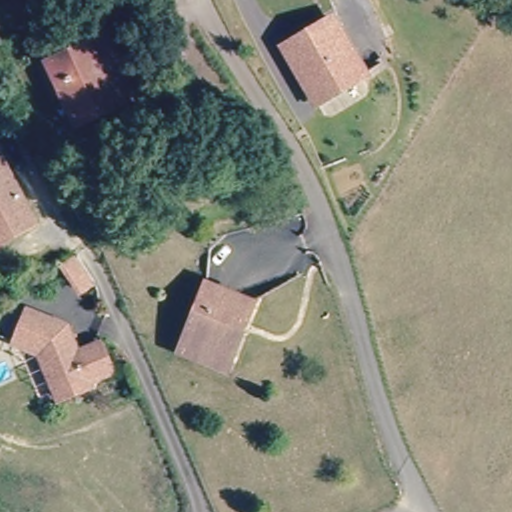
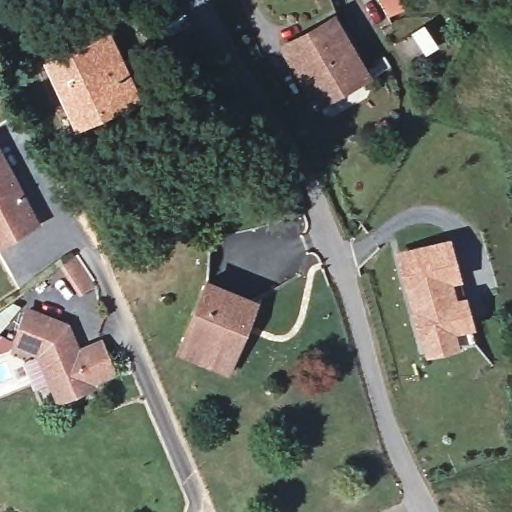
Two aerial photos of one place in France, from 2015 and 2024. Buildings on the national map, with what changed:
unchanged [(368,74),(323,106),(286,52),(331,20),(368,74)]
unchanged [(110,97),(73,116),(43,60),(102,27),(136,90),(113,104),(110,97)]
unchanged [(42,225),(1,249),(0,250),(0,154),(42,225)]
new [(451,236),(462,280),(451,283),(455,296),(465,293),(474,328),(456,333),(460,350),(424,360),(394,251),(451,236)]
unchanged [(80,257),(91,285),(73,293),(60,266),(80,257)]
unchanged [(177,350),(183,333),(203,280),(251,300),(231,353),(225,370),(177,350)]
unchanged [(113,372),(89,382),(91,385),(58,399),(40,355),(15,341),(31,309),(68,327),(78,352),(101,343),(113,372)]

